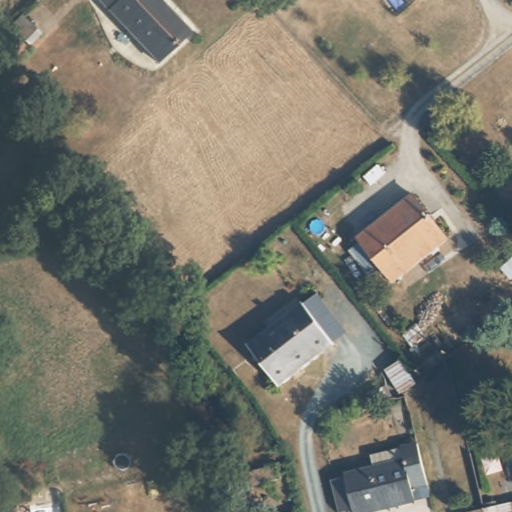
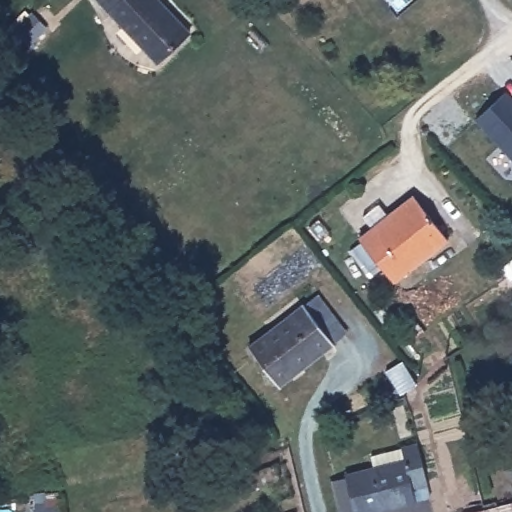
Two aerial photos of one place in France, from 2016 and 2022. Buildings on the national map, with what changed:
unchanged [(162,56),(108,0),(165,0),(191,30),(162,56)]
unchanged [(22,13),(41,34),(27,45),(22,41),(15,48),(1,34),(22,13)]
new [(503,90),(512,97),(512,163),(475,115),(503,90)]
unchanged [(362,235),(415,191),(450,234),(396,277),(362,235)]
unchanged [(250,345),(304,302),(305,303),(318,292),(347,330),(335,340),(279,383),(250,345)]
unchanged [(399,359),(413,383),(401,393),(385,368),(399,359)]
unchanged [(407,490),(410,502),(362,512),(349,512),(341,472),(370,466),(367,455),(397,449),(412,446),(421,486),(407,490)]
unchanged [(252,482),(250,469),(281,462),(283,475),(252,482)]
new [(35,510),(34,501),(59,498),(60,512),(31,512),(31,510),(35,510)]
unchanged [(475,505),(488,501),(502,498),(505,512),(476,512),(475,505)]

